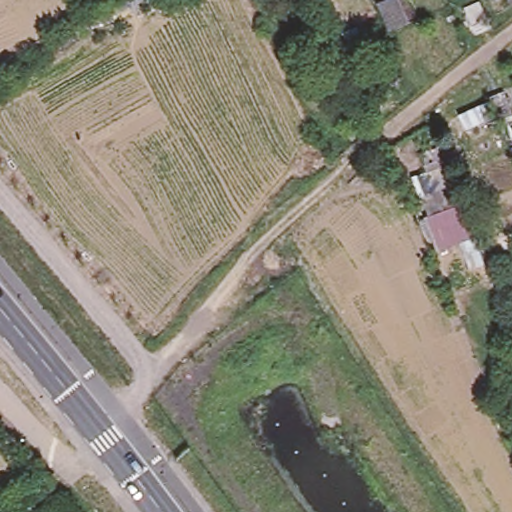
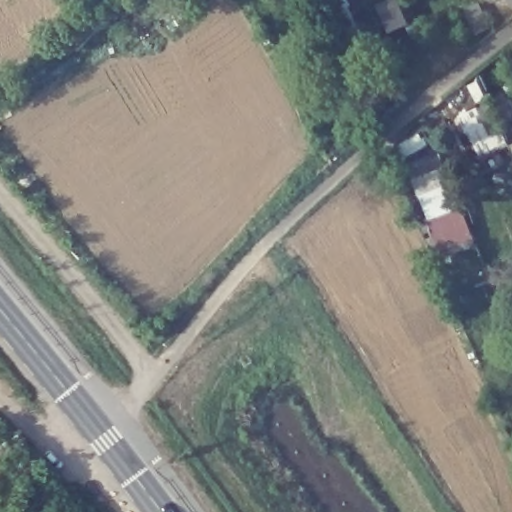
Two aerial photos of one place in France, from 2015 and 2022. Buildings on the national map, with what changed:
unchanged [(399,0),(409,24),(391,30),(380,4),(389,0),(399,0)]
unchanged [(488,0),(495,0),(490,3),(488,0)]
unchanged [(507,0),(512,0),(512,4),(511,4),(507,0)]

